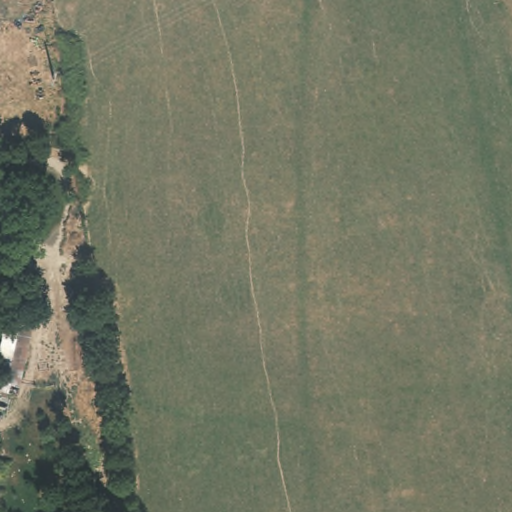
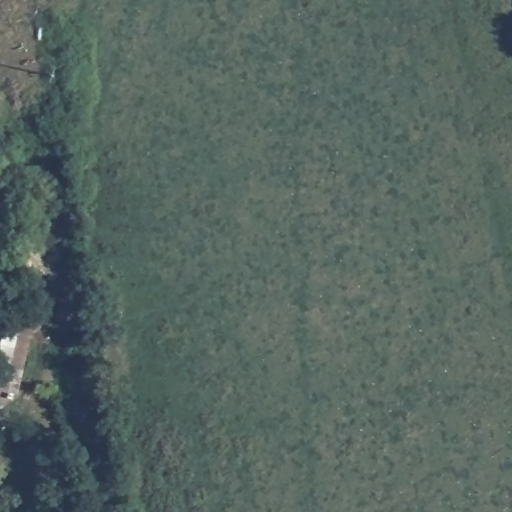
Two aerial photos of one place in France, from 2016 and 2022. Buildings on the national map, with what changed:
unchanged [(0,344),(10,303),(37,310),(31,339),(24,370),(0,366),(0,344)]

